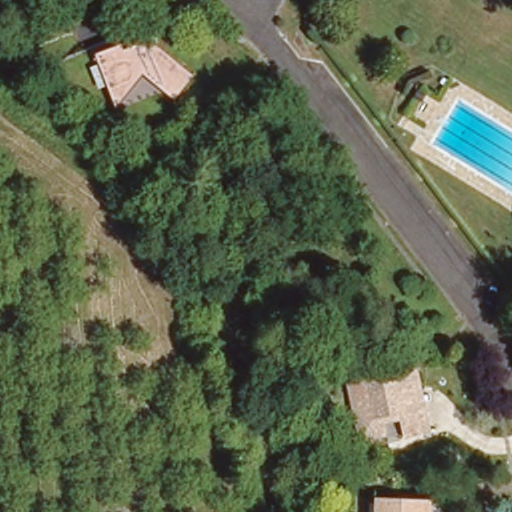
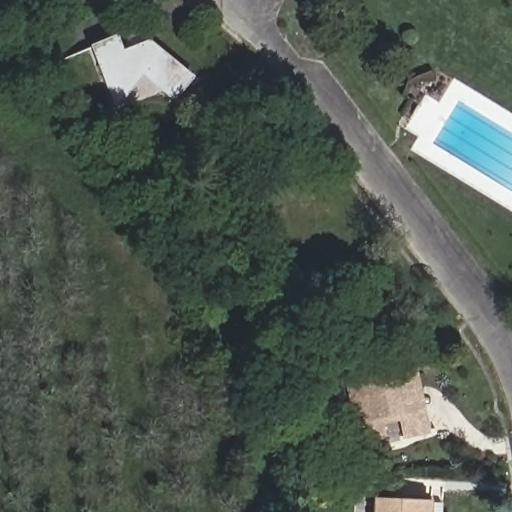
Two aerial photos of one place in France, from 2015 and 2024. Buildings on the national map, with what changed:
unchanged [(139,33),(195,82),(177,103),(145,76),(120,107),(115,105),(95,51),(139,33)]
unchanged [(383,433),(359,440),(345,394),(361,390),(357,377),(384,370),(389,366),(396,363),(404,367),(412,391),(408,398),(421,435),(401,442),(397,428),(383,431),(383,433)]
unchanged [(425,512),(372,512),(372,506),(425,507),(425,512)]

